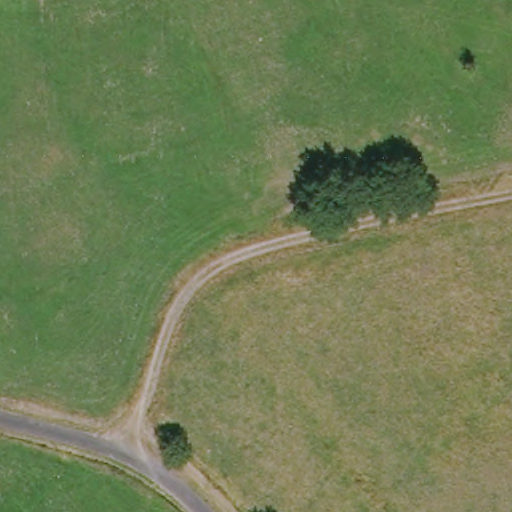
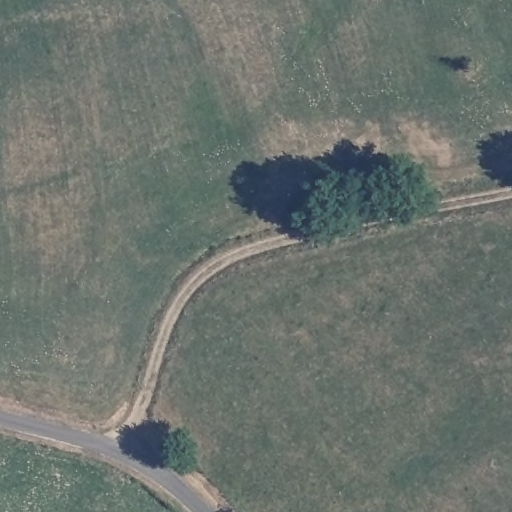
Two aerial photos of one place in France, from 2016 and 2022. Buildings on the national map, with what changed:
[]

